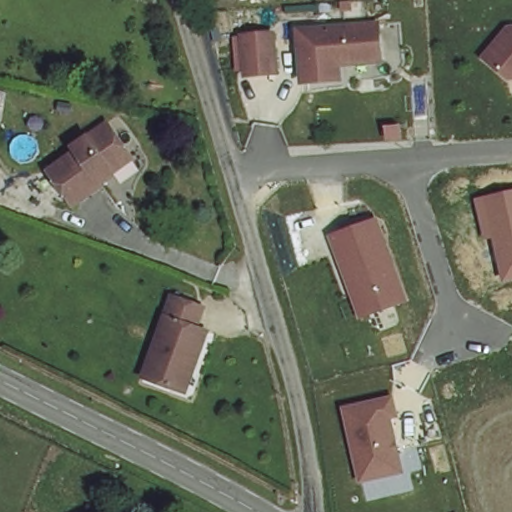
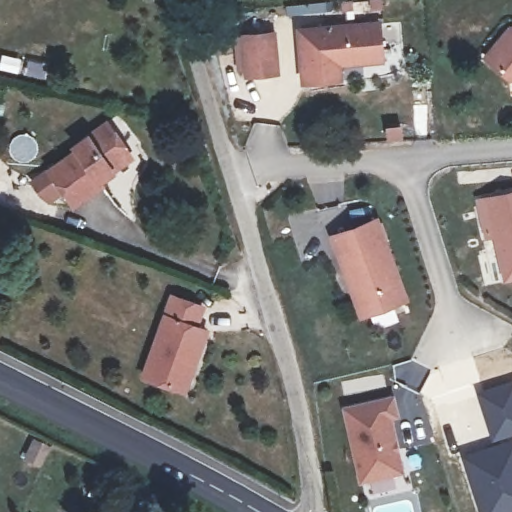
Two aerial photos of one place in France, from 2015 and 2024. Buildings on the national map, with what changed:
unchanged [(379,56),(336,59),(338,74),(302,77),(299,26),(377,20),(379,56)]
unchanged [(275,67),(245,70),(242,30),(272,27),(275,67)]
unchanged [(489,54),(512,27),(512,75),(489,54)]
unchanged [(43,167),(68,147),(64,143),(98,117),(120,146),(125,152),(104,171),(71,200),(43,167)]
unchanged [(512,190),(512,281),(503,282),(492,237),(483,239),(473,199),(512,190)]
unchanged [(409,300),(360,318),(331,237),(378,218),(409,300)]
unchanged [(194,362),(183,392),(148,379),(176,297),(206,307),(199,328),(209,332),(199,363),(194,362)]
new [(512,379),(512,436),(492,442),(476,390),(512,379)]
unchanged [(392,395),(396,417),(389,418),(401,473),(357,483),(341,406),(392,395)]
new [(492,442),(512,436),(512,512),(478,512),(459,453),(492,442)]

